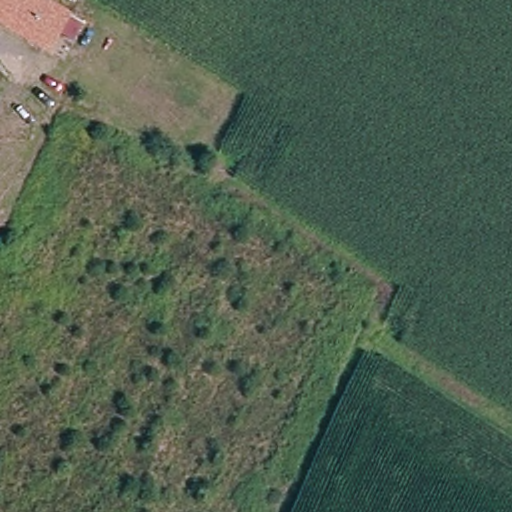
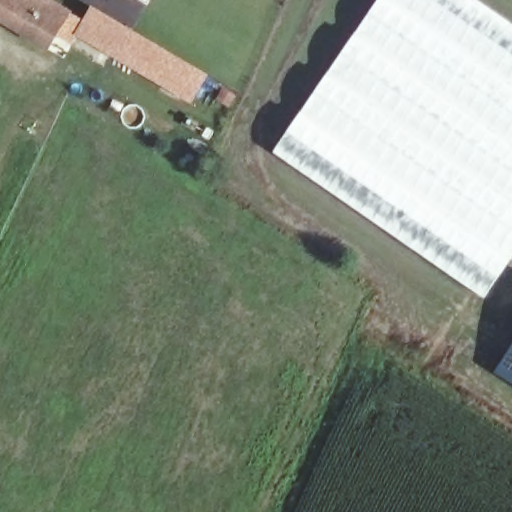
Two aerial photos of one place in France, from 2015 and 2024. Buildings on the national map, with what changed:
unchanged [(46,49),(0,19),(0,0),(48,0),(68,13),(46,49)]
new [(477,0),(512,24),(512,258),(484,300),(419,257),(271,152),(376,0),(477,0)]
new [(209,78),(192,106),(76,39),(94,9),(209,78)]
new [(512,345),(512,383),(495,372),(512,345)]

